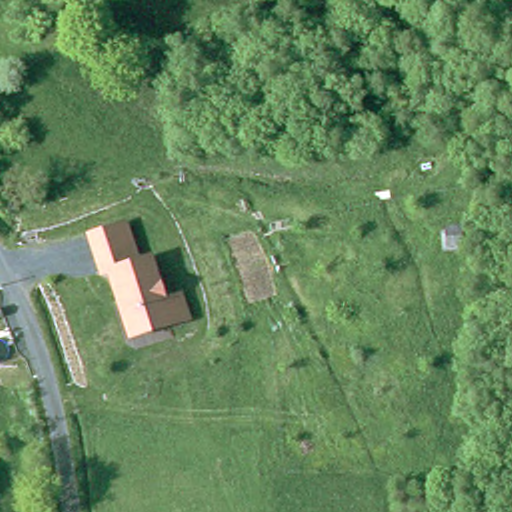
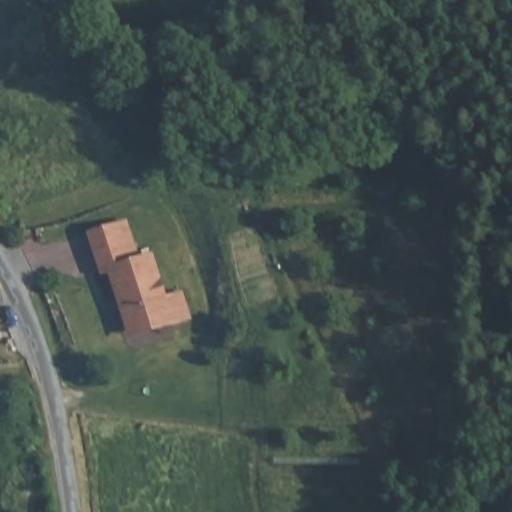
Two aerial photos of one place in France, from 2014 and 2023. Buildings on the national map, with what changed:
unchanged [(130,261),(144,257),(158,299),(175,295),(183,319),(165,323),(163,318),(125,331),(103,272),(97,274),(84,234),(118,223),(130,261)]

